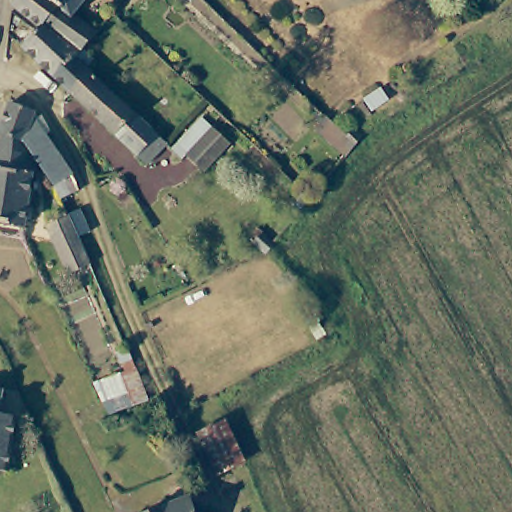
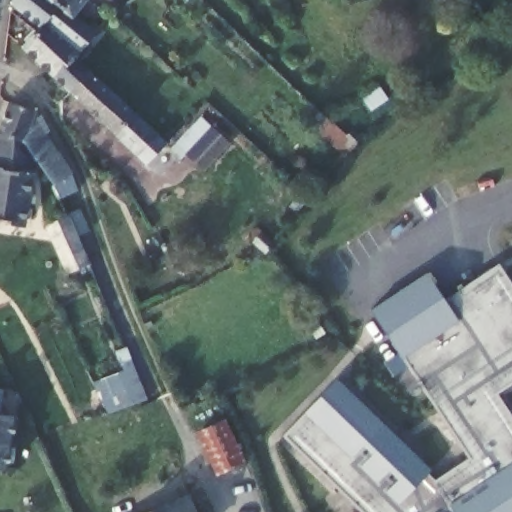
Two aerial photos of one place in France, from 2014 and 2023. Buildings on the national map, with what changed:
unchanged [(93,24),(95,26),(74,51),(40,23),(10,0),(63,0),(74,8),(93,24)]
unchanged [(63,0),(80,0),(74,8),(63,0)]
unchanged [(71,55),(86,69),(67,90),(21,46),(36,27),(40,23),(74,51),(71,55)]
unchanged [(141,161),(67,90),(86,69),(161,139),(141,161)]
unchanged [(341,118),(351,127),(346,133),(338,142),(307,114),(313,108),(308,102),(313,97),(338,121),(341,118)]
unchanged [(30,157),(25,192),(29,193),(28,203),(24,203),(21,224),(0,220),(0,131),(10,104),(36,114),(34,120),(68,174),(79,193),(60,206),(49,187),(31,157),(30,157)]
unchanged [(206,117),(234,142),(205,170),(177,147),(206,117)]
unchanged [(250,245),(248,242),(238,235),(247,225),(259,236),(250,245)]
unchanged [(69,264),(56,237),(72,230),(75,236),(85,256),(69,264)]
new [(304,412),(337,379),(430,470),(428,473),(435,482),(470,459),(404,358),(371,310),(426,272),(444,301),(499,265),(512,284),(512,384),(498,393),(512,416),(512,512),(362,512),(282,435),(304,412)]
new [(97,388),(134,369),(148,390),(113,414),(97,388)]
unchanged [(240,457),(210,473),(195,431),(224,419),(240,457)]
unchanged [(197,512),(149,512),(193,494),(197,512)]

